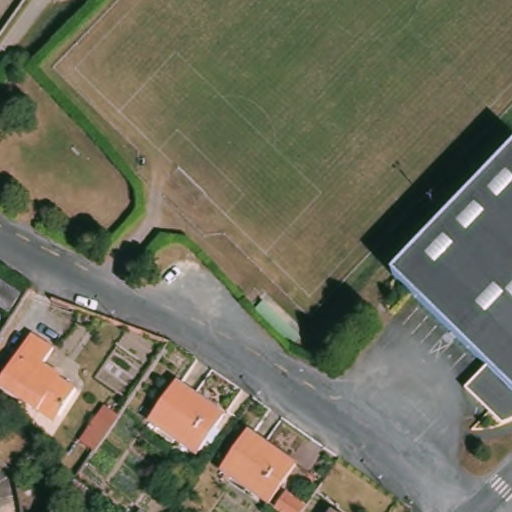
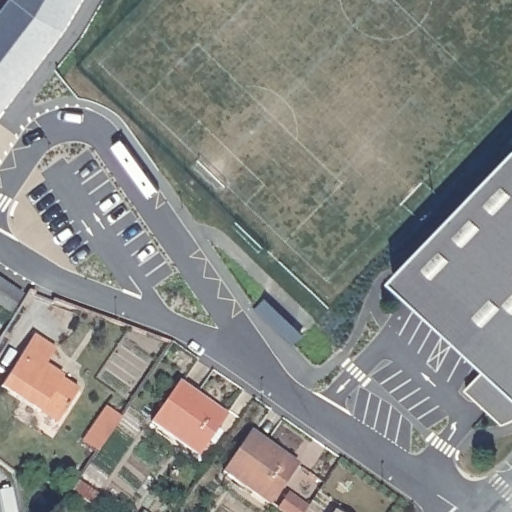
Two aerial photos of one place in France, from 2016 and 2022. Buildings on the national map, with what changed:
new [(63,32),(0,116),(0,12),(9,0),(82,0),(63,32)]
unchanged [(497,378),(401,290),(512,168),(512,434),(476,401),(497,378)]
unchanged [(22,292),(3,321),(0,318),(0,277),(22,292)]
unchanged [(293,343),(261,318),(270,307),(302,334),(293,343)]
unchanged [(39,411),(0,386),(0,384),(33,333),(54,346),(45,361),(58,370),(54,373),(76,387),(59,413),(55,421),(39,411)]
unchanged [(223,415),(198,452),(153,420),(178,385),(223,415)]
unchanged [(99,420),(110,402),(121,410),(113,425),(111,427),(99,420)]
unchanged [(300,464),(273,502),(225,468),(251,432),(300,464)]
unchanged [(285,512),(281,510),(290,495),(311,510),(310,512),(285,512)]

